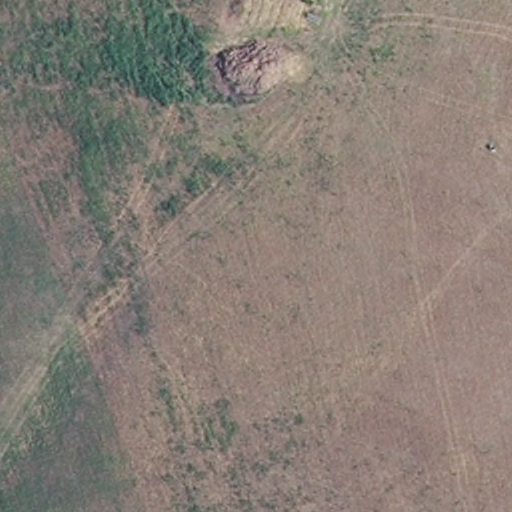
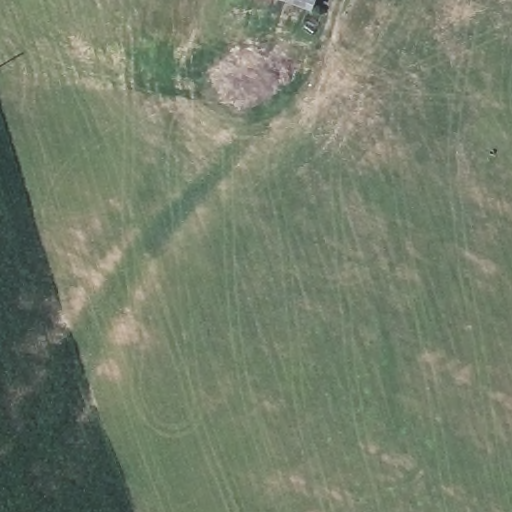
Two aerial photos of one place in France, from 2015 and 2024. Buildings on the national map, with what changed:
unchanged [(304,5),(295,0),(306,0),(304,5)]

